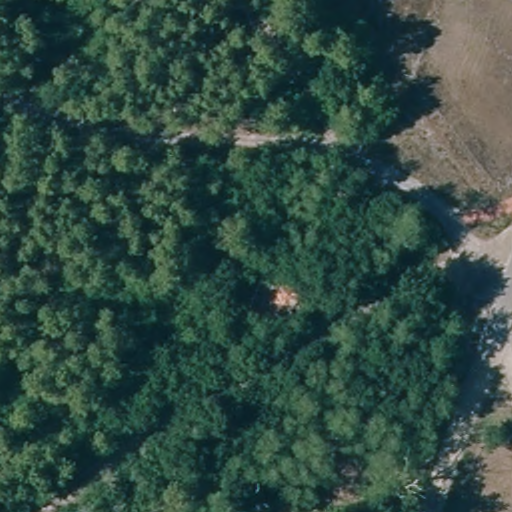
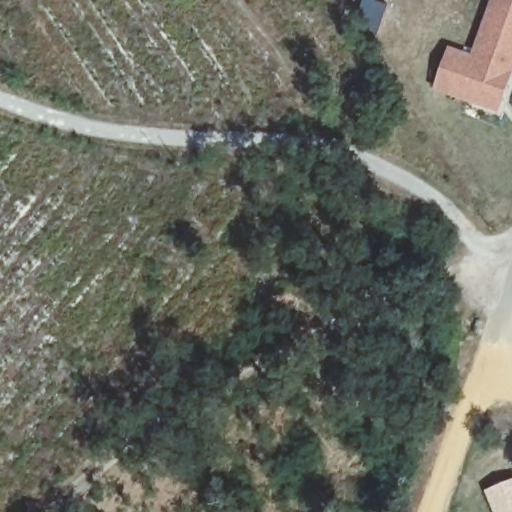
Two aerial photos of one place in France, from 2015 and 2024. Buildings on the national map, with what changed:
new [(432,89),(447,45),(470,53),(489,0),(512,0),(512,77),(499,111),(432,89)]
demolished [(250,321),(260,280),(305,292),(283,335),(250,321)]
new [(486,490),(512,479),(512,512),(494,512),(486,490)]

